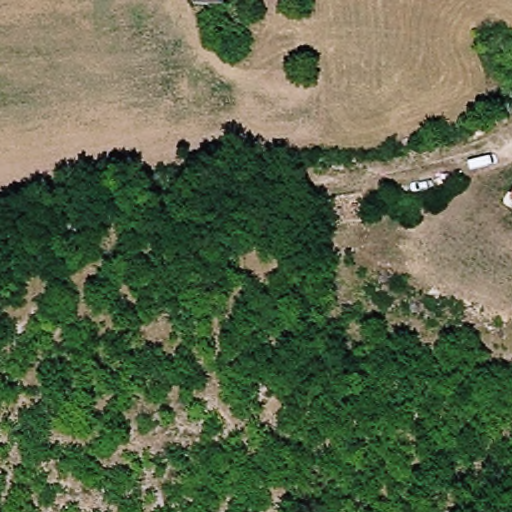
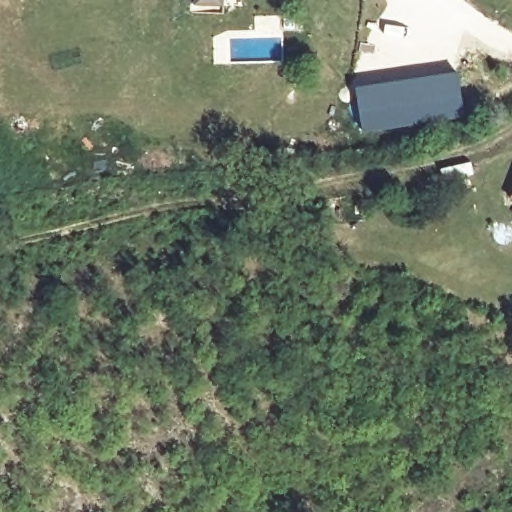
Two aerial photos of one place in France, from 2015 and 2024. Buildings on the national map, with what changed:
unchanged [(188,5),(188,0),(217,0),(217,6),(188,5)]
new [(458,70),(465,120),(361,133),(354,85),(458,70)]
unchanged [(512,194),(512,199),(510,197),(512,194)]

